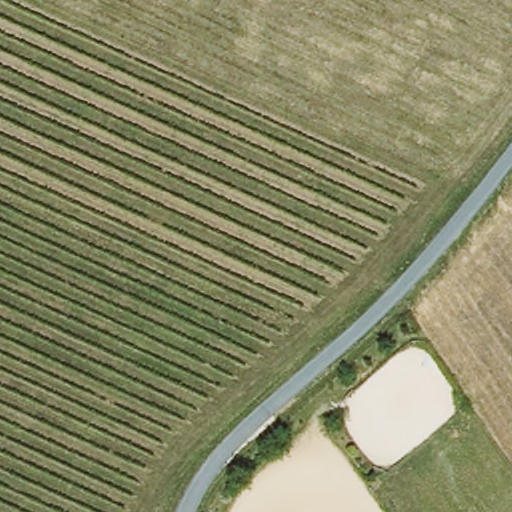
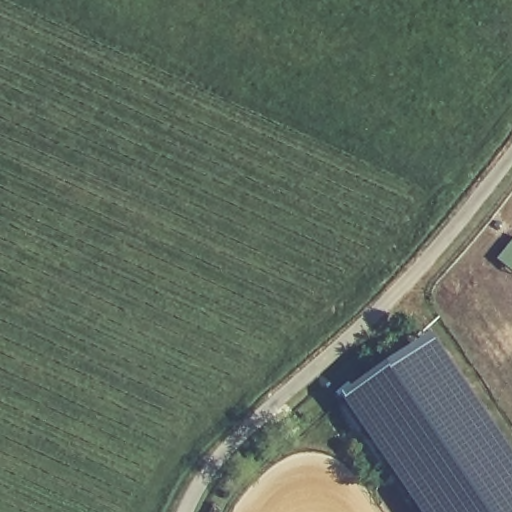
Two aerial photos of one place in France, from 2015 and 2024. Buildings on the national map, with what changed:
new [(349,394),(431,345),(450,373),(456,389),(483,428),(486,426),(512,462),(512,512),(414,512),(354,425),(340,401),(349,394)]

